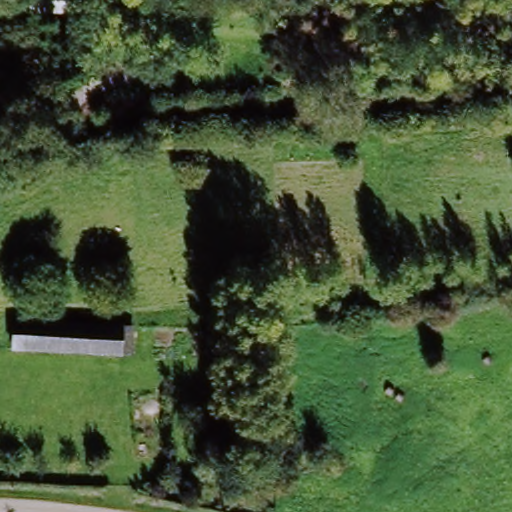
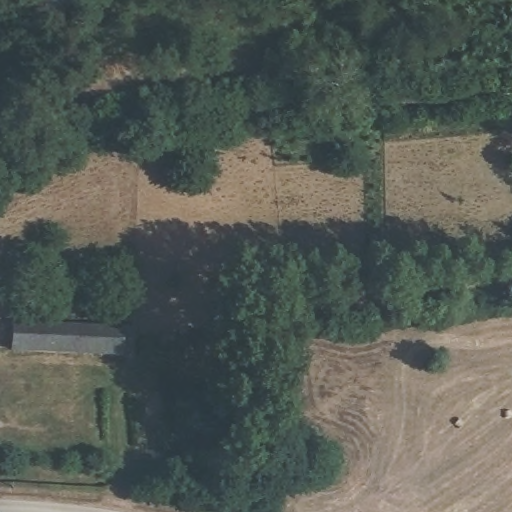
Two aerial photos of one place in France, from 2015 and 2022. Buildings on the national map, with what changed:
unchanged [(25,21),(25,0),(71,0),(72,24),(25,21)]
unchanged [(29,337),(130,327),(132,352),(32,362),(29,337)]

